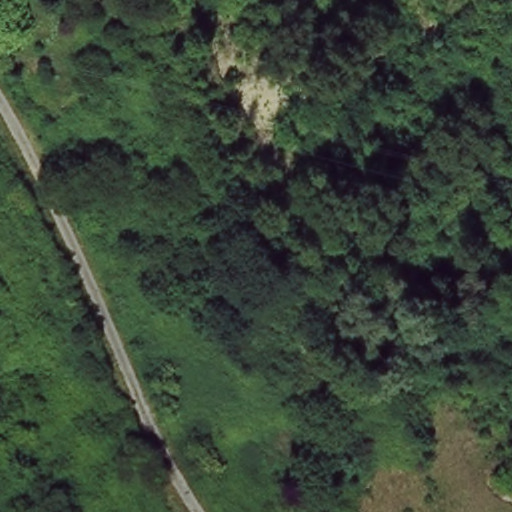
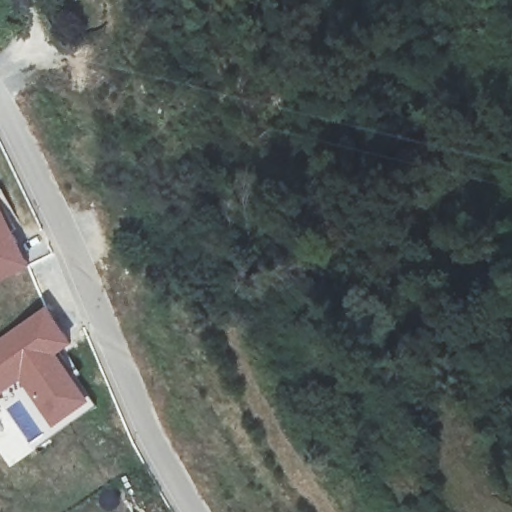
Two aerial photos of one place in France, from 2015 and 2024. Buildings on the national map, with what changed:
new [(0,283),(0,200),(31,266),(0,283)]
new [(75,345),(60,357),(93,403),(56,430),(22,381),(0,396),(0,341),(48,307),(75,345)]

